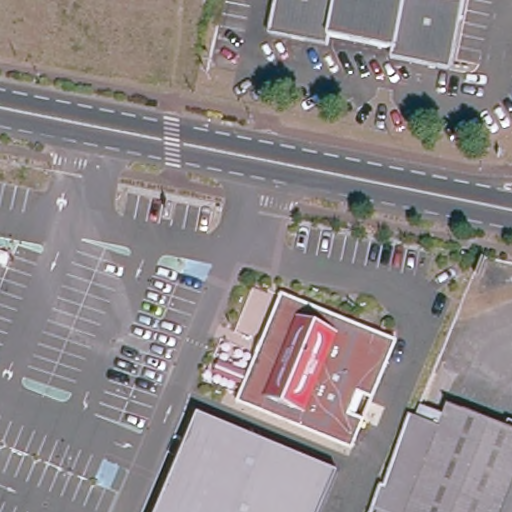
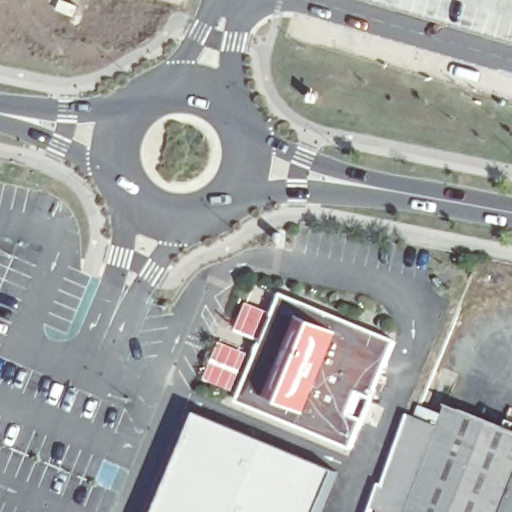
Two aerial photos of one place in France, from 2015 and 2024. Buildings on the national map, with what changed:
new [(57,0),(60,0),(75,6),(70,16),(54,10),(57,0)]
demolished [(390,60),(391,50),(329,37),(327,47),(266,36),(273,0),(417,0),(404,63),(390,60)]
new [(360,0),(512,0),(512,44),(360,0)]
demolished [(417,0),(465,0),(450,71),(404,63),(417,0)]
unchanged [(306,310),(396,344),(355,452),(279,423),(240,408),(281,300),(306,310)]
new [(219,340),(249,353),(233,393),(200,380),(219,340)]
unchanged [(439,425),(448,402),(512,427),(512,512),(376,512),(413,416),(439,425)]
unchanged [(272,445),(342,475),(325,512),(160,512),(203,415),(272,445)]

